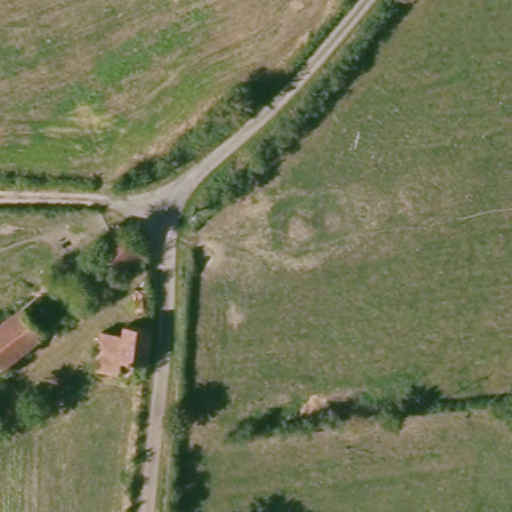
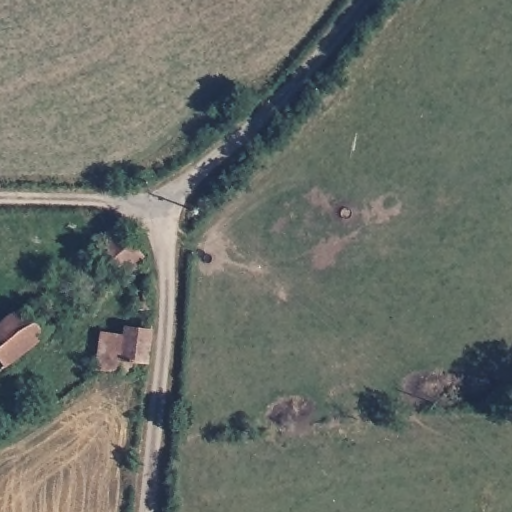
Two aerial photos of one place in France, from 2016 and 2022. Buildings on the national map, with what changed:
unchanged [(131,219),(151,258),(126,273),(108,243),(103,234),(123,224),(131,219)]
unchanged [(150,319),(135,318),(135,297),(151,297),(150,319)]
unchanged [(6,368),(0,359),(0,323),(21,308),(45,342),(6,368)]
unchanged [(143,367),(133,367),(133,376),(100,374),(100,339),(121,340),(121,332),(148,333),(143,367)]

